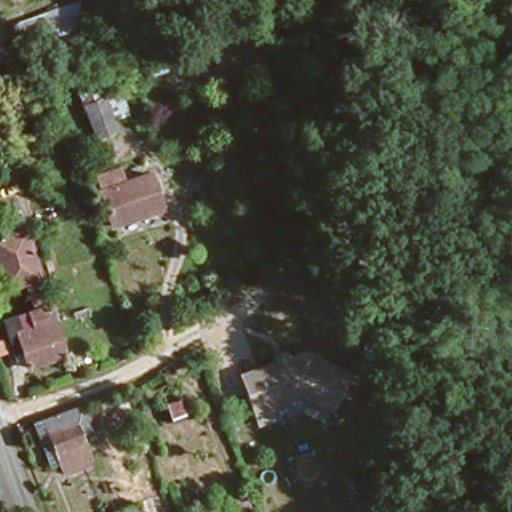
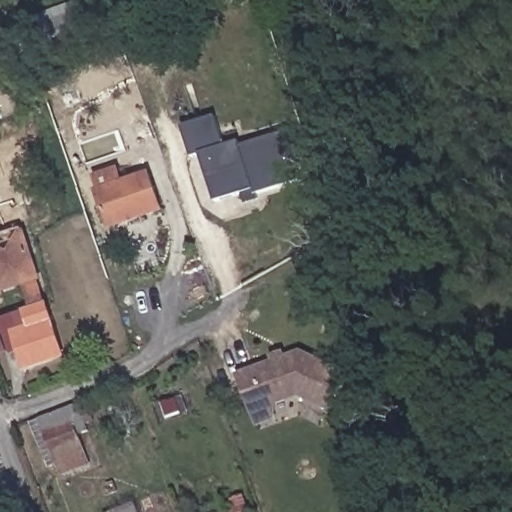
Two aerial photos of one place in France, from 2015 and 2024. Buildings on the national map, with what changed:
unchanged [(80,6),(94,3),(97,14),(85,18),(90,32),(34,51),(21,19),(73,0),(78,0),(80,6)]
unchanged [(139,42),(180,25),(191,61),(146,74),(139,42)]
unchanged [(91,65),(99,90),(121,84),(130,113),(115,119),(119,130),(92,138),(67,67),(91,65)]
new [(217,200),(202,155),(194,157),(184,128),(217,117),(226,146),(242,141),(243,147),(287,134),(300,174),(283,179),(285,185),(258,194),(256,188),(217,200)]
unchanged [(139,170),(152,205),(140,210),(112,221),(98,185),(127,175),(139,170)]
unchanged [(16,282),(2,287),(0,283),(0,206),(13,201),(41,283),(45,296),(23,303),(16,282)]
unchanged [(33,354),(23,327),(12,331),(5,309),(23,303),(45,296),(62,344),(33,354)]
unchanged [(333,413),(299,398),(277,406),(277,420),(257,427),(236,373),(272,360),(270,355),(285,350),(288,355),(304,350),(350,373),(333,413)]
unchanged [(52,473),(32,416),(64,404),(85,460),(52,473)]
unchanged [(156,512),(99,512),(99,510),(151,496),(156,512)]

